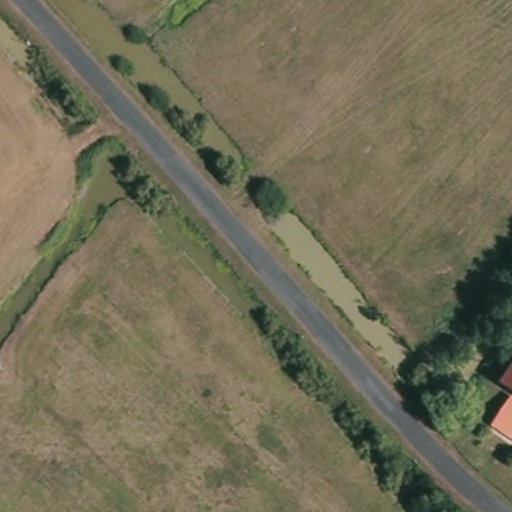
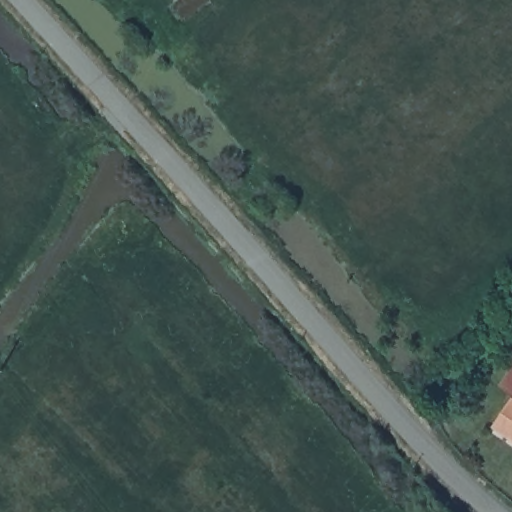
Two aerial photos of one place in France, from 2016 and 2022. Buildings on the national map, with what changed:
unchanged [(512,366),(512,393),(500,386),(512,366)]
unchanged [(512,447),(492,435),(511,405),(512,405),(512,447)]

